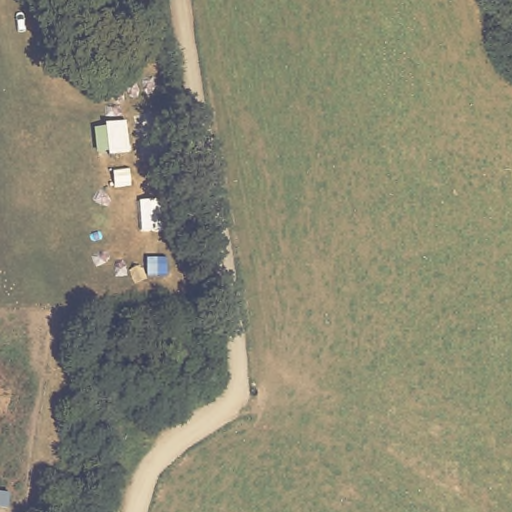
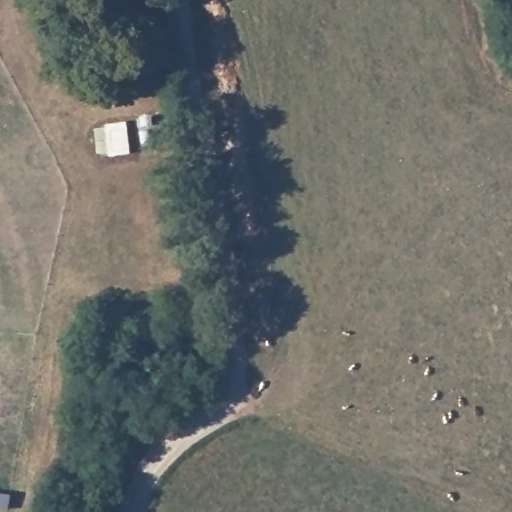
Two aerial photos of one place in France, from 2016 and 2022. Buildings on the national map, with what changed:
unchanged [(104,116),(128,115),(131,149),(110,151),(104,116)]

